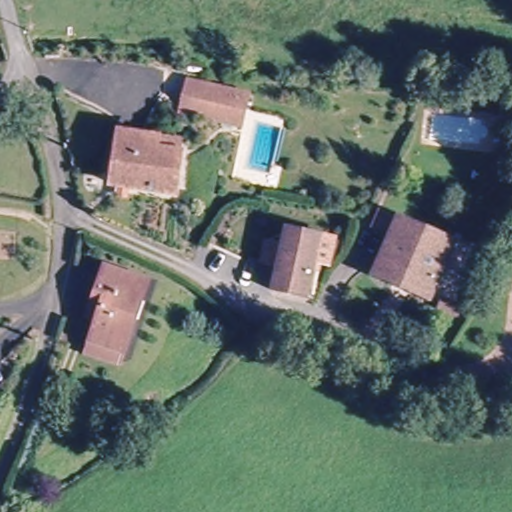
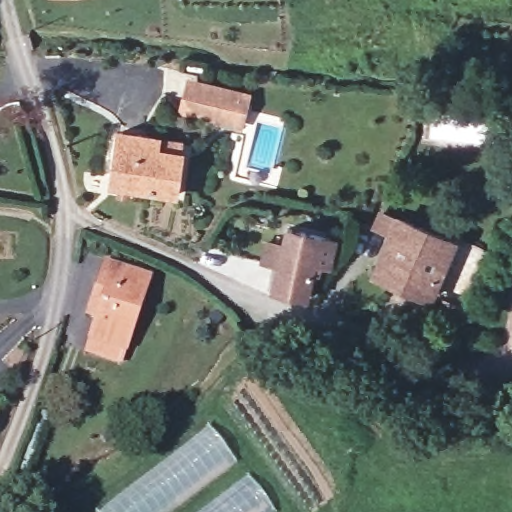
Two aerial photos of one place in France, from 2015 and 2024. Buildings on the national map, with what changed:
unchanged [(189,109),(196,85),(244,98),(238,121),(189,109)]
unchanged [(156,149),(179,152),(173,192),(112,184),(119,132),(157,138),(156,149)]
unchanged [(372,274),(395,218),(450,240),(464,246),(456,268),(441,261),(427,298),(372,274)]
unchanged [(327,267),(312,264),(305,298),(270,291),(281,233),(316,239),(331,242),(327,267)]
unchanged [(85,356),(90,341),(96,319),(87,316),(104,268),(143,281),(122,352),(117,367),(85,356)]
new [(237,464),(174,512),(96,512),(207,425),(237,464)]
new [(275,512),(198,512),(247,475),(275,512)]

